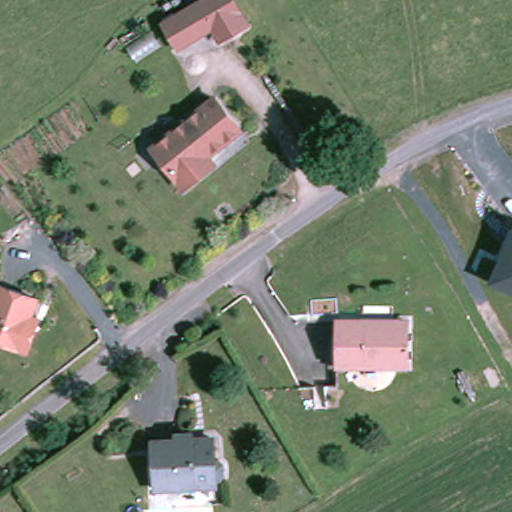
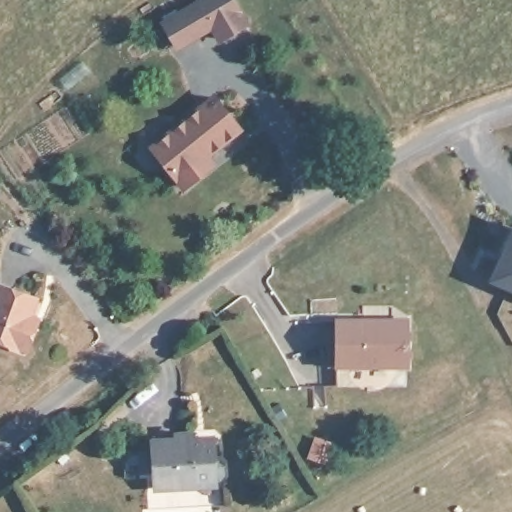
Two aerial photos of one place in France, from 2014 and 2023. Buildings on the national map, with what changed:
unchanged [(195,0),(238,0),(251,21),(219,41),(210,32),(177,51),(160,21),(195,0)]
unchanged [(206,170),(184,186),(154,146),(220,99),(242,131),(207,157),(214,165),(206,170)]
unchanged [(490,280),(512,233),(512,290),(490,280)]
unchanged [(0,345),(0,315),(9,293),(45,306),(39,324),(43,326),(39,337),(31,356),(0,345)]
unchanged [(416,324),(416,325),(416,329),(414,369),(337,367),(337,344),(345,344),(346,327),(346,321),(355,321),(374,322),(416,324)]
unchanged [(197,490),(159,491),(158,451),(157,442),(172,442),(181,442),(181,436),(196,437),(196,442),(217,441),(218,463),(224,463),(228,468),(229,480),(226,483),(220,483),(219,489),(197,490)]

